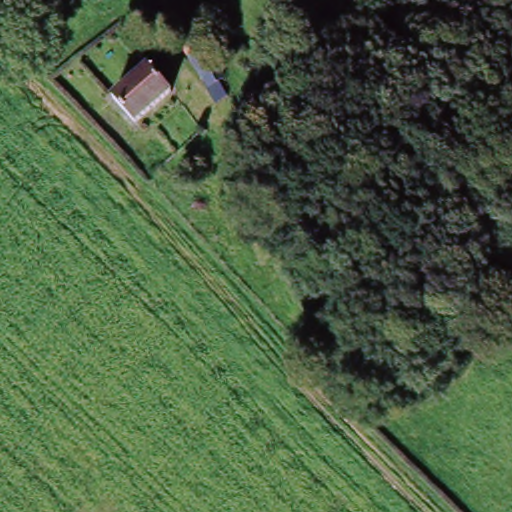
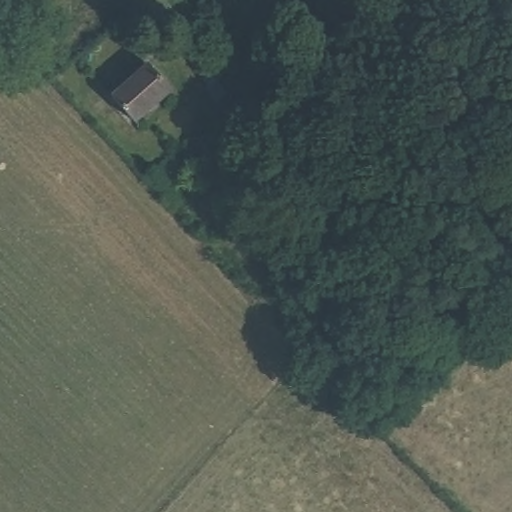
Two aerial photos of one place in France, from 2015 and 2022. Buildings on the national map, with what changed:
unchanged [(214,69),(186,28),(201,19),(228,60),(214,69)]
unchanged [(164,87),(133,117),(111,94),(143,64),(164,87)]

